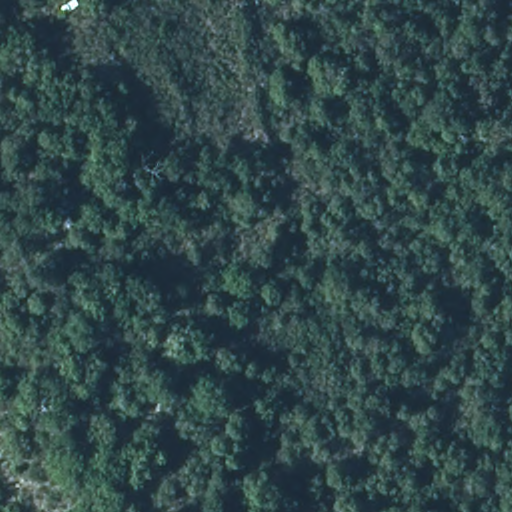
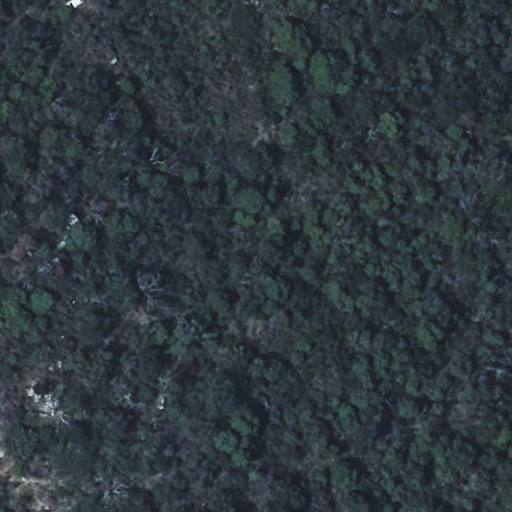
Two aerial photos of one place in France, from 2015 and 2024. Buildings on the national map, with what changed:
unchanged [(68,0),(83,0),(85,3),(66,16),(60,6),(68,0)]
unchanged [(61,220),(74,212),(80,226),(70,232),(61,220)]

